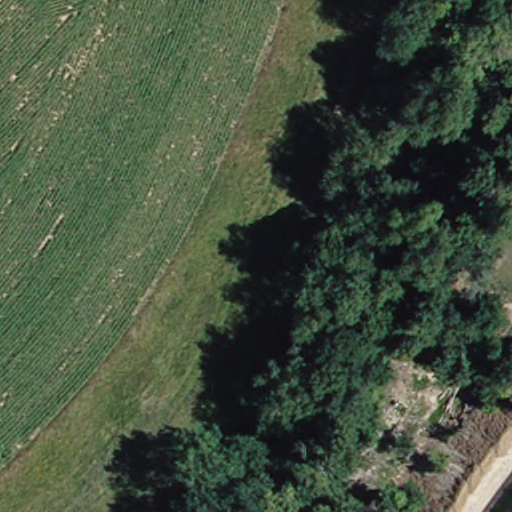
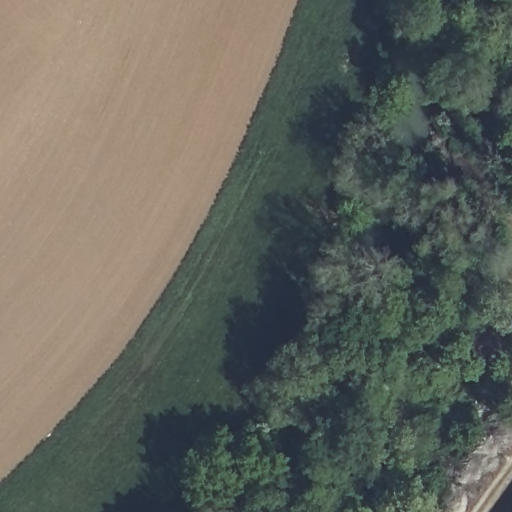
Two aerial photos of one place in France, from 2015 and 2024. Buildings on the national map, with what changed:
[]

